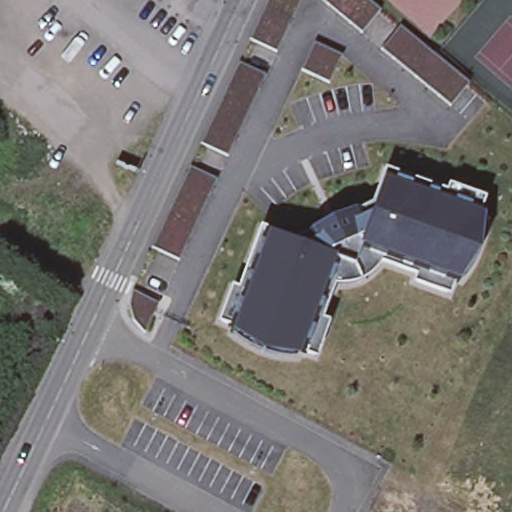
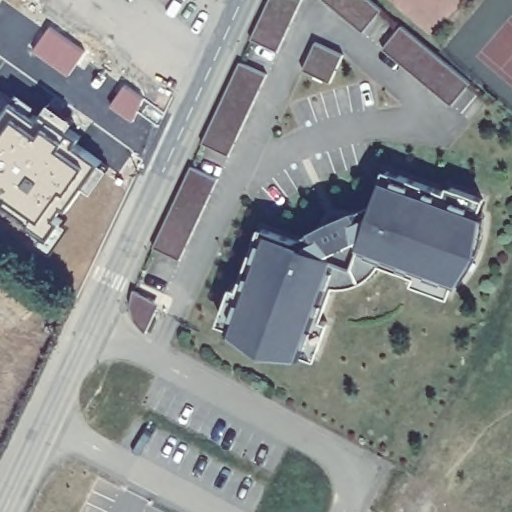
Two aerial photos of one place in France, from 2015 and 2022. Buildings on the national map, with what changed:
unchanged [(278,51),(251,38),(269,0),(302,0),(278,51)]
unchanged [(382,9),(362,32),(324,0),(371,0),(382,9)]
unchanged [(459,72),(470,82),(452,105),(382,48),(401,25),(459,72)]
unchanged [(347,55),(334,83),(306,70),(320,42),(347,55)]
unchanged [(240,60),(267,73),(230,155),(202,142),(240,60)]
new [(45,242),(0,211),(0,121),(7,110),(92,165),(45,242)]
unchanged [(218,178),(180,259),(153,246),(191,166),(218,178)]
unchanged [(284,357),(277,356),(271,354),(265,352),(258,350),(252,347),(246,344),(240,340),(235,336),(232,334),(235,327),(220,322),(232,289),(238,291),(261,230),(303,245),(312,240),(322,226),(330,215),(343,217),(360,218),(370,214),(385,172),(447,194),(449,188),(482,200),(477,215),(483,217),(483,219),(483,225),(482,232),(482,239),(480,245),(477,252),(475,258),(472,264),(468,270),(465,275),(460,281),(453,278),(447,294),(415,281),(417,274),(405,270),(380,261),(378,264),(377,267),(375,269),(372,271),(370,274),(368,276),(365,277),(362,279),(360,280),(357,282),(354,283),(351,284),(348,284),(345,285),(342,285),(338,285),(335,285),(332,284),(318,320),(326,323),(314,356),(298,350),(295,357),(291,357),(284,357)]
unchanged [(134,288),(161,302),(147,332),(145,331),(135,319),(131,304),(133,289),(134,288)]

